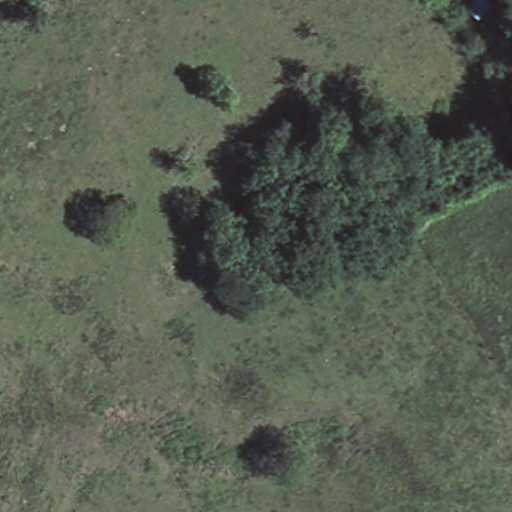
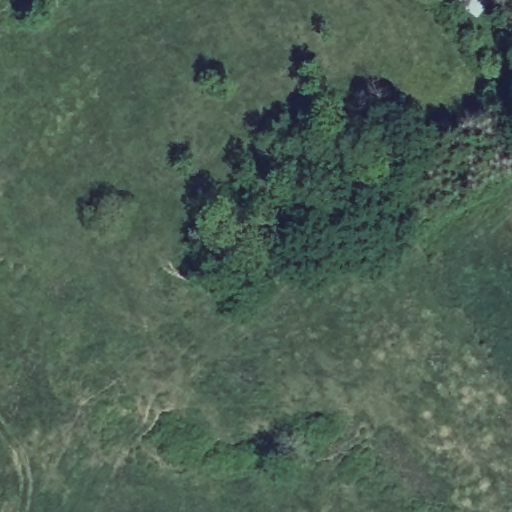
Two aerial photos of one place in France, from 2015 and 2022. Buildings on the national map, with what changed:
unchanged [(477,17),(458,0),(490,0),(477,17)]

